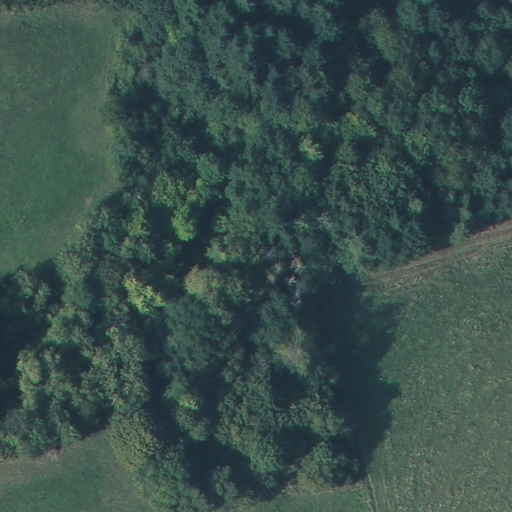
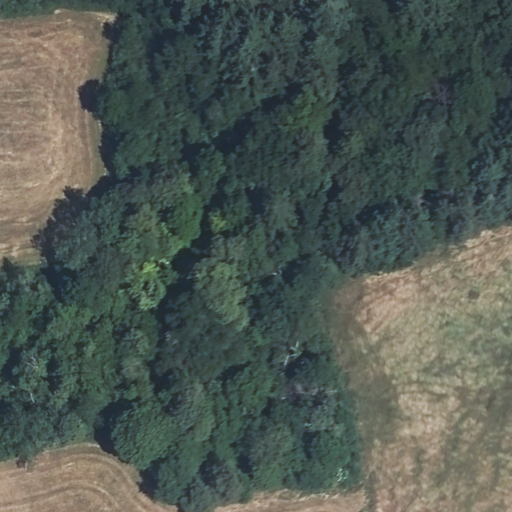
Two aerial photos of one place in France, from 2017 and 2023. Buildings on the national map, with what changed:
unchanged [(243,450),(208,461),(200,427),(234,418),(243,450)]

